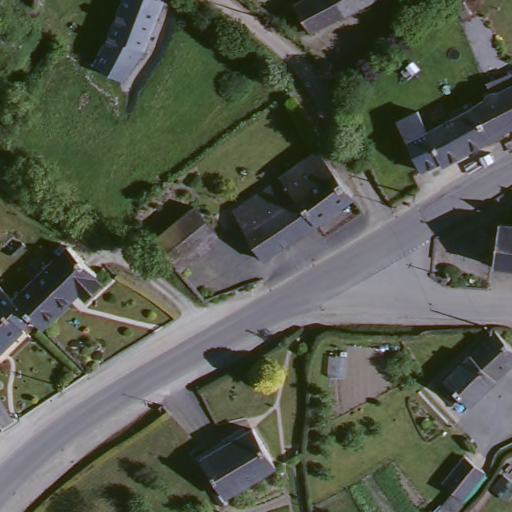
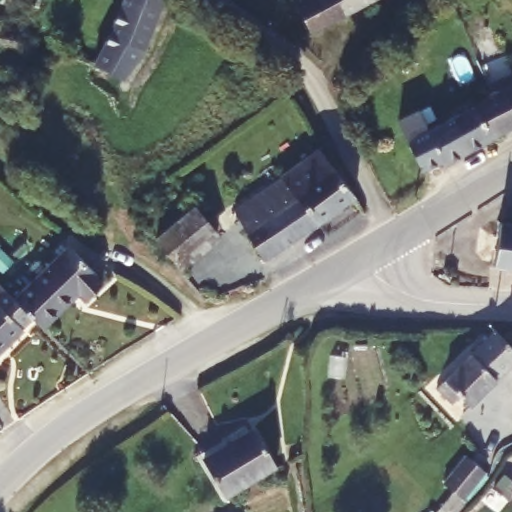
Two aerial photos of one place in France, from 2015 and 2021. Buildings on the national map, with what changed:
unchanged [(132,83),(97,62),(116,34),(129,0),(170,0),(145,65),(132,83)]
unchanged [(288,2),(292,0),(363,0),(303,27),(288,2)]
unchanged [(512,92),(512,136),(508,138),(488,106),(511,93),(512,92)]
unchanged [(461,164),(442,135),(488,106),(508,138),(461,164)]
unchanged [(275,258),(237,212),(283,180),(282,178),(312,157),(325,148),(361,198),(320,230),(275,258)]
unchanged [(156,230),(194,192),(232,234),(194,268),(156,230)]
unchanged [(501,260),(507,215),(512,215),(512,260),(501,260)]
unchanged [(94,295),(88,290),(50,322),(41,313),(17,289),(72,242),(111,280),(94,295)]
unchanged [(0,272),(1,272),(12,283),(17,289),(41,313),(0,349),(0,272)]
unchanged [(512,335),(512,368),(482,397),(468,386),(457,395),(456,393),(442,377),(497,323),(512,335)]
unchanged [(236,493),(211,448),(257,420),(282,463),(236,493)]
unchanged [(450,477),(472,448),(491,465),(468,492),(450,477)]

